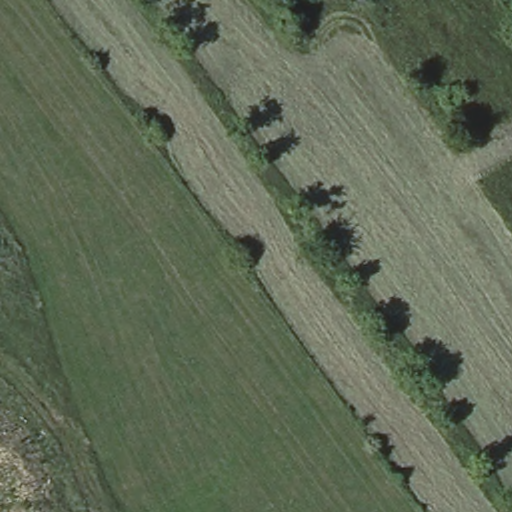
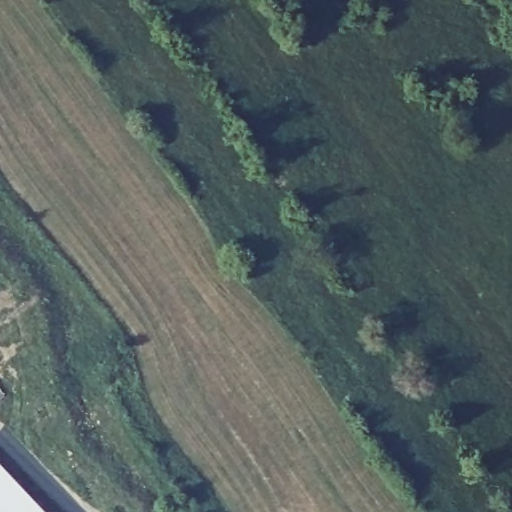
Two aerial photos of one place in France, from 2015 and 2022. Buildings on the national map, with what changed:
new [(50,512),(0,512),(0,458),(50,512)]

